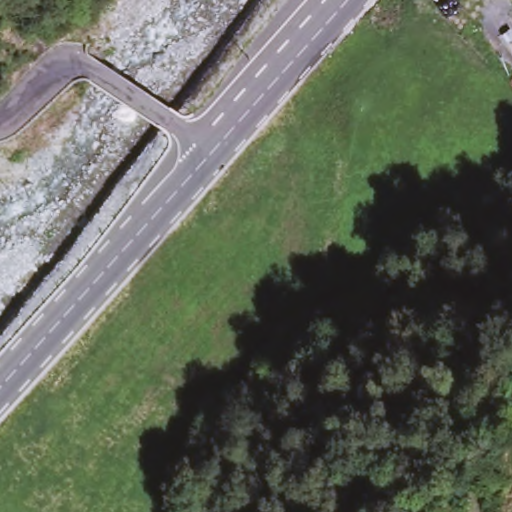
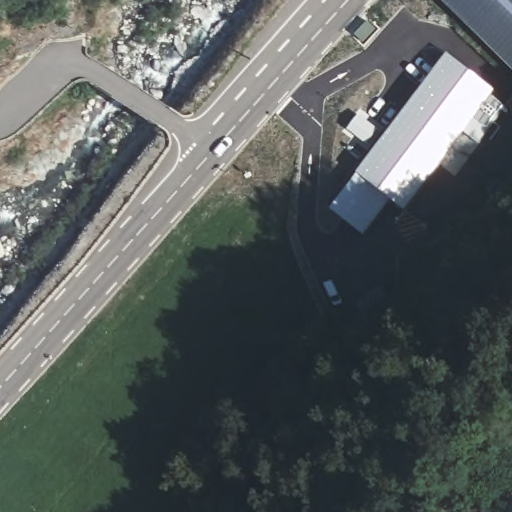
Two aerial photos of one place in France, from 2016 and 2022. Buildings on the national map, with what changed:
new [(367,22),(375,29),(362,41),(354,34),(367,22)]
new [(340,192),(447,54),(488,86),(485,90),(500,102),(483,124),(473,136),(459,126),(397,205),(385,195),(356,230),(347,223),(351,218),(335,205),(343,194),(340,192)]
new [(357,113),(375,128),(364,142),(346,127),(357,113)]

